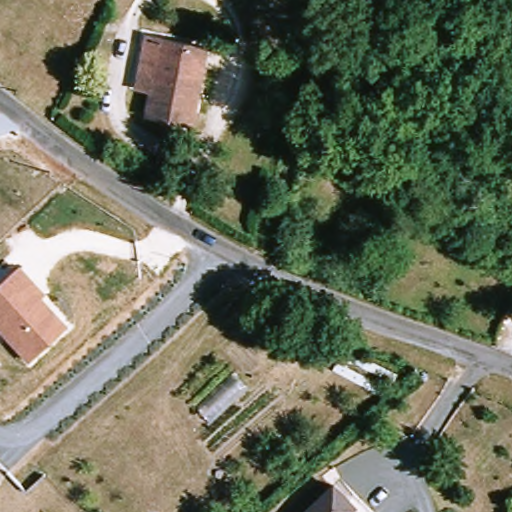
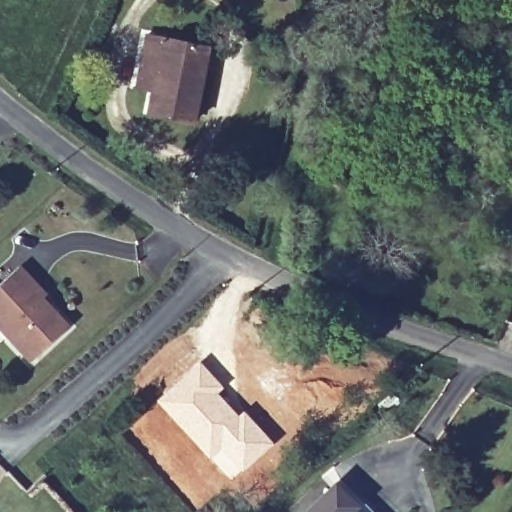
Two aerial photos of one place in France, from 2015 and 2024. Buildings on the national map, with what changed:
unchanged [(197,125),(153,115),(157,96),(146,94),(157,37),(168,39),(213,48),(197,125)]
unchanged [(359,165),(369,150),(390,162),(380,177),(359,165)]
unchanged [(47,292),(42,297),(69,325),(30,362),(0,330),(0,284),(20,265),(47,292)]
new [(201,360),(225,387),(220,392),(238,412),(242,408),(275,442),(232,480),(156,400),(201,360)]
unchanged [(340,500),(352,512),(326,512),(340,500)]
unchanged [(365,503),(373,512),(356,512),(365,503)]

